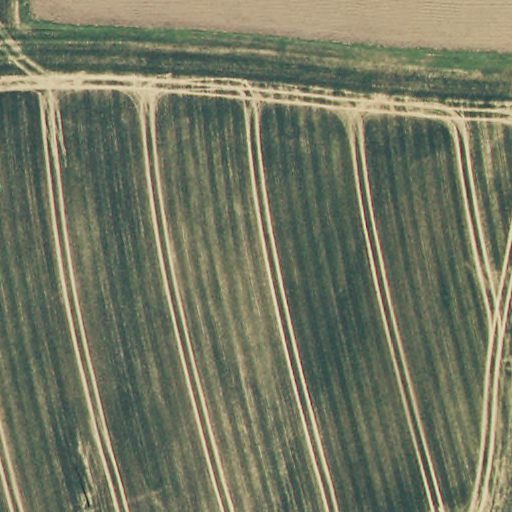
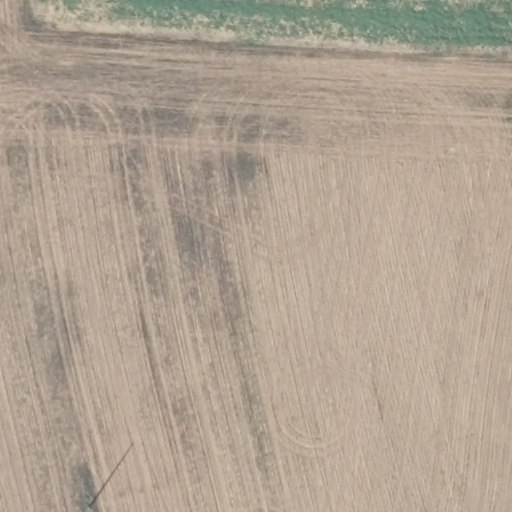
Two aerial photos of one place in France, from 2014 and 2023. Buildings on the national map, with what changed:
[]

